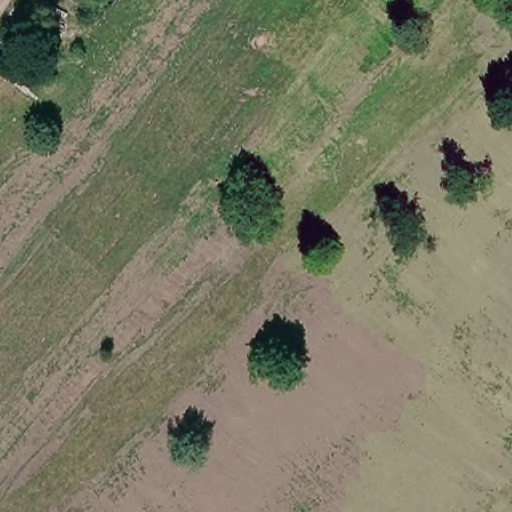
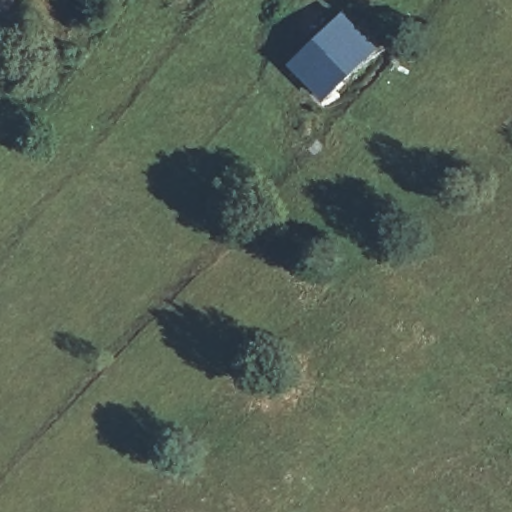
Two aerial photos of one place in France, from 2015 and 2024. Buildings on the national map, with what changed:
demolished [(433,0),(410,23),(389,7),(396,0),(433,0)]
new [(344,8),(382,45),(322,100),(287,62),(344,8)]

